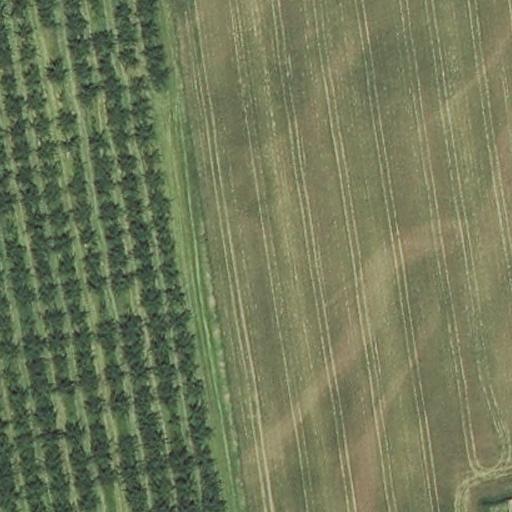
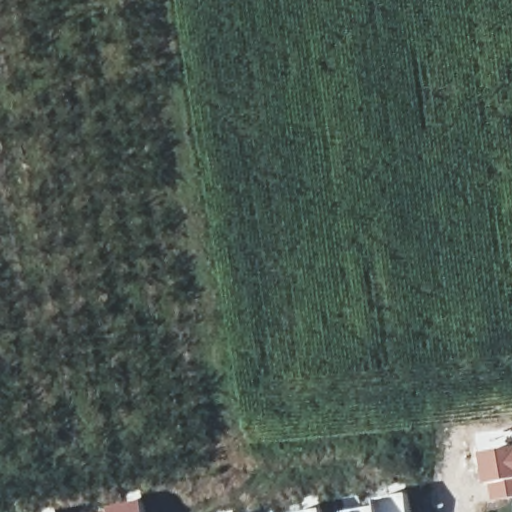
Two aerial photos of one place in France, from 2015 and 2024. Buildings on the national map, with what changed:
new [(489,502),(484,485),(478,453),(512,446),(512,498),(489,502)]
new [(374,503),(372,497),(409,490),(414,512),(341,512),(341,511),(374,503)]
new [(110,507),(144,501),(146,512),(111,512),(110,507)]
new [(323,506),(324,512),(290,512),(323,506)]

